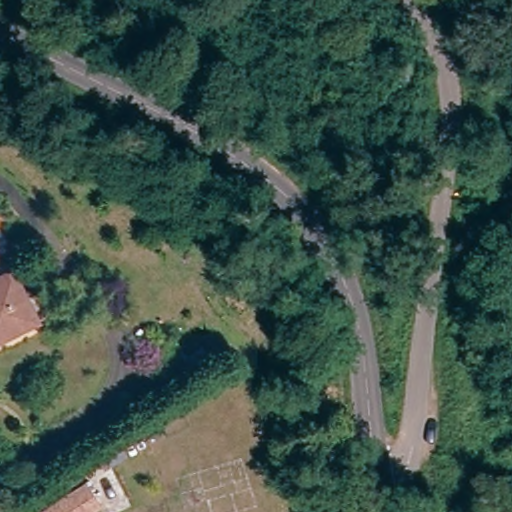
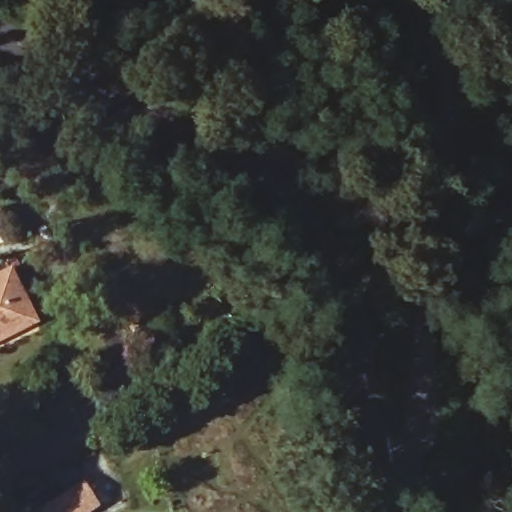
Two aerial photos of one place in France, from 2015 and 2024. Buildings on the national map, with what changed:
unchanged [(12,263),(44,325),(0,346),(0,269),(12,263)]
unchanged [(101,506),(92,512),(48,512),(86,485),(101,506)]

